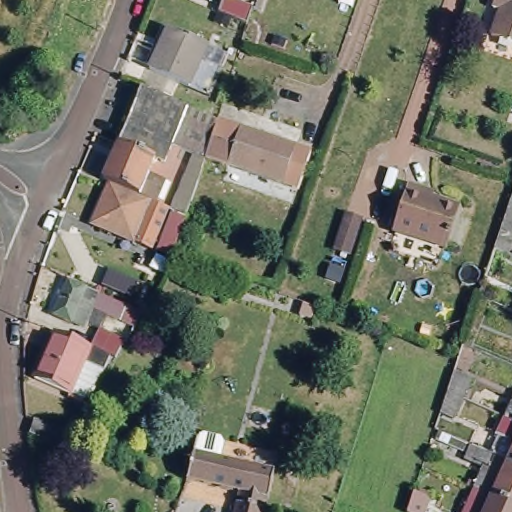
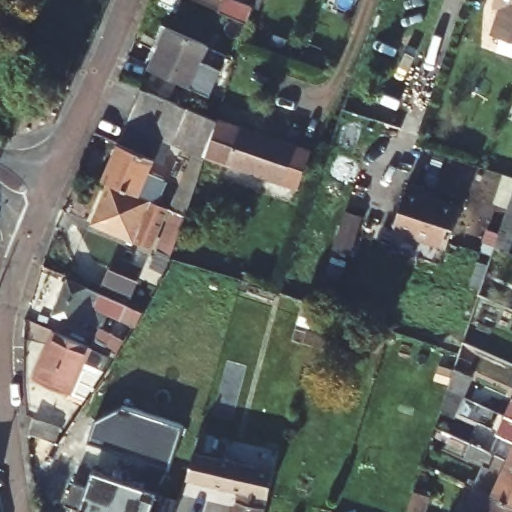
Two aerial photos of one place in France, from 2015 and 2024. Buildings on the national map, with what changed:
unchanged [(226,0),(231,0),(253,9),(247,24),(220,13),(226,0)]
unchanged [(504,7),(497,5),(499,0),(512,0),(512,40),(495,34),(504,7)]
unchanged [(210,46),(192,88),(155,71),(174,29),(210,46)]
unchanged [(185,156),(187,151),(167,143),(121,123),(135,87),(214,120),(206,143),(202,154),(200,162),(182,215),(166,208),(185,156)]
unchanged [(295,188),(202,154),(206,143),(214,120),(215,116),(309,151),(295,188)]
unchanged [(160,161),(151,157),(145,173),(160,179),(152,203),(99,180),(121,123),(167,143),(160,161)]
unchanged [(136,229),(155,237),(149,251),(90,225),(107,185),(147,203),(136,229)]
unchanged [(424,191),(422,194),(460,206),(448,242),(394,225),(407,185),(424,191)]
unchanged [(155,253),(167,211),(182,217),(167,260),(155,253)]
unchanged [(100,306),(90,330),(62,317),(75,283),(149,313),(143,324),(100,306)]
unchanged [(98,348),(109,330),(132,342),(120,360),(98,348)]
unchanged [(95,348),(75,395),(42,381),(62,334),(95,348)]
new [(169,468),(89,441),(97,419),(125,407),(182,426),(169,468)]
unchanged [(60,430),(55,443),(32,434),(37,421),(60,430)]
unchanged [(188,480),(195,454),(278,473),(268,512),(236,512),(241,491),(188,480)]
unchanged [(512,464),(512,498),(500,492),(512,464)]
new [(97,512),(81,506),(67,501),(75,479),(89,484),(94,470),(158,490),(149,512),(97,512)]
unchanged [(500,492),(512,498),(512,512),(468,512),(481,484),(500,492)]

